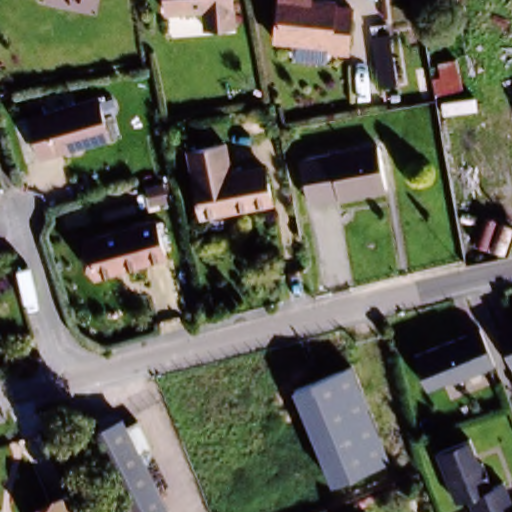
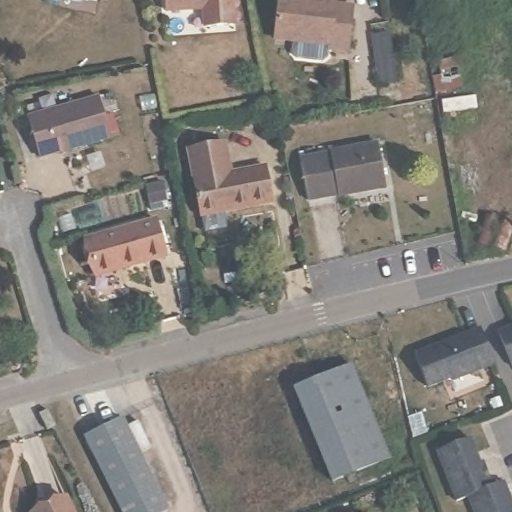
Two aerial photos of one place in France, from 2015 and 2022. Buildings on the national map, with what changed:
unchanged [(237,36),(206,39),(204,9),(167,11),(166,0),(233,0),(234,6),(237,36)]
unchanged [(330,46),(275,40),(279,0),(331,0),(336,1),(335,5),(353,6),(348,51),(329,50),(330,46)]
unchanged [(391,84),(372,86),(366,35),(384,33),(391,84)]
unchanged [(110,143),(40,164),(28,123),(98,102),(110,143)]
unchanged [(272,202),(201,216),(187,150),(225,143),(231,173),(265,166),(272,202)]
unchanged [(386,187),(308,202),(301,159),(378,145),(386,187)]
unchanged [(166,257),(96,277),(85,240),(156,220),(166,257)]
unchanged [(502,332),(512,328),(512,355),(502,332)]
unchanged [(490,354),(495,365),(452,381),(452,378),(427,388),(415,355),(480,329),(490,354)]
unchanged [(385,453),(328,477),(289,384),(346,361),(385,453)]
unchanged [(168,503),(163,505),(149,512),(119,512),(80,433),(117,414),(150,479),(155,477),(168,503)]
unchanged [(468,497),(457,502),(437,452),(470,439),(479,463),(482,462),(492,487),(503,482),(512,504),(492,512),(474,512),(468,497)]
unchanged [(71,512),(46,512),(66,503),(71,512)]
unchanged [(512,504),(512,512),(492,512),(512,504)]
unchanged [(373,512),(369,512),(372,511),(373,512)]

